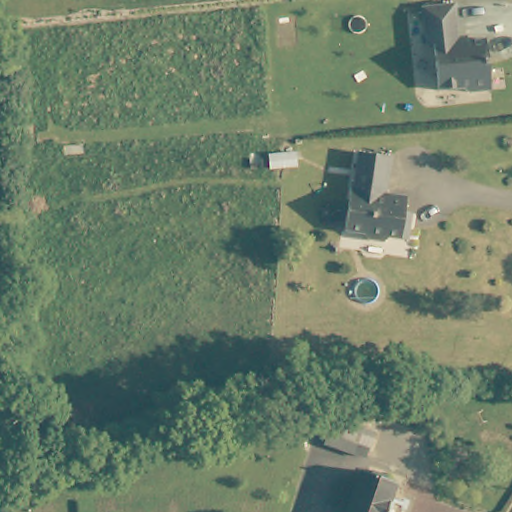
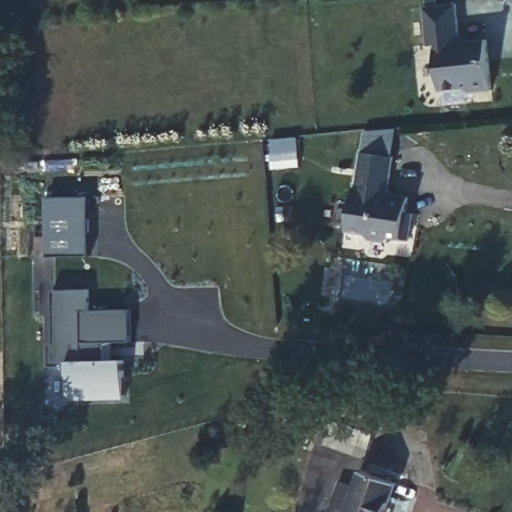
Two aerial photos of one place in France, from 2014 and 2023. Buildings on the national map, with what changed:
unchanged [(451,2),(455,41),(483,38),(488,91),(467,93),(462,86),(437,88),(434,43),(423,44),(419,5),(451,2)]
unchanged [(406,239),(384,236),(379,242),(363,239),(364,233),(341,229),(355,152),(386,156),(381,196),(401,199),(400,221),(408,223),(406,239)]
unchanged [(298,157),(299,172),(271,173),(271,158),(298,157)]
new [(87,256),(44,256),(43,197),(86,197),(87,256)]
new [(87,311),(129,311),(130,342),(111,343),(111,361),(123,361),(123,400),(67,401),(66,365),(48,368),(47,344),(52,343),(52,291),(86,290),(87,311)]
unchanged [(333,417),(375,432),(366,457),(323,441),(333,417)]
unchanged [(394,484),(383,512),(345,512),(362,470),(394,484)]

